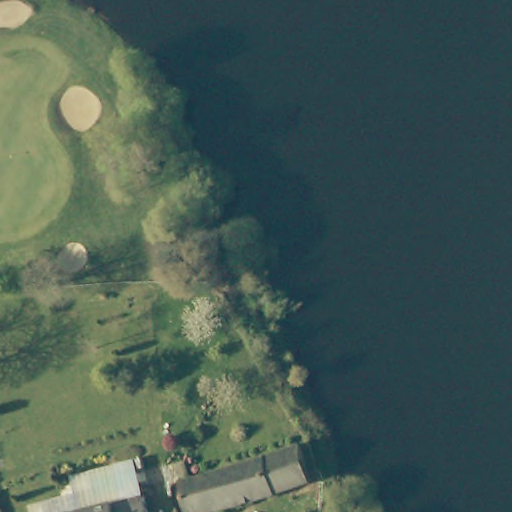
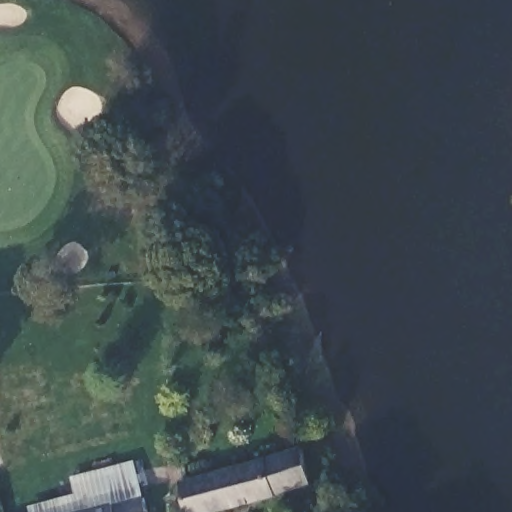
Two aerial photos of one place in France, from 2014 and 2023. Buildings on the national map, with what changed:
unchanged [(307,484),(272,493),(262,472),(257,459),(297,447),(307,484)]
unchanged [(262,472),(272,493),(205,512),(181,512),(173,485),(189,480),(192,478),(257,459),(262,472)]
unchanged [(24,506),(71,492),(67,476),(128,460),(137,493),(71,512),(69,512),(26,512),(24,506)]
unchanged [(137,493),(142,512),(71,512),(137,493)]

